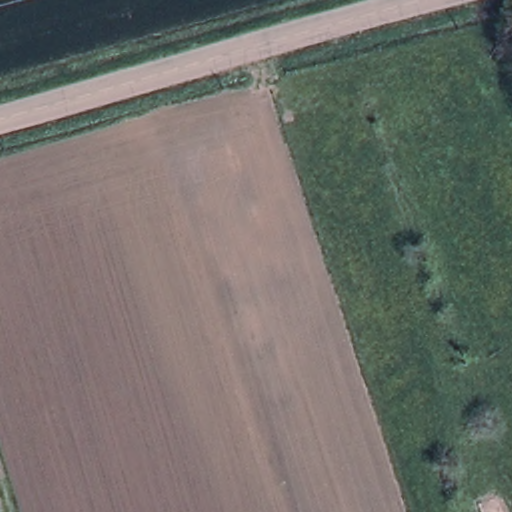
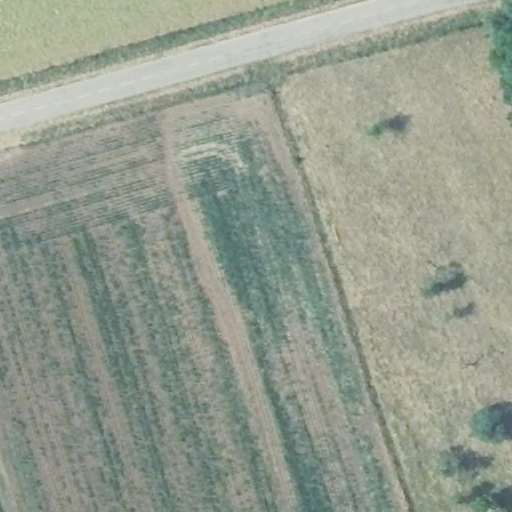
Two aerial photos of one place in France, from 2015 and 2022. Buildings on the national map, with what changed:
unchanged [(498,501),(503,512),(480,512),(478,508),(498,501)]

